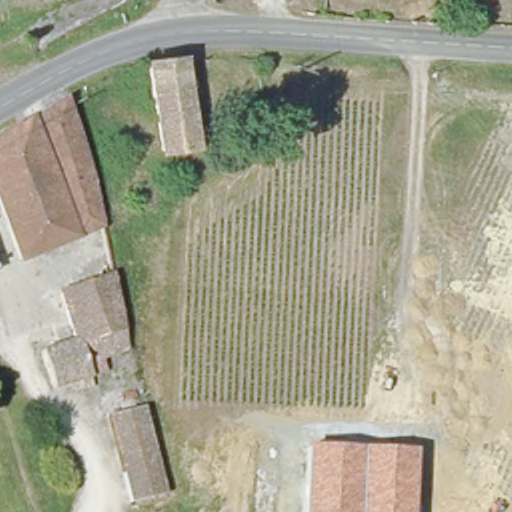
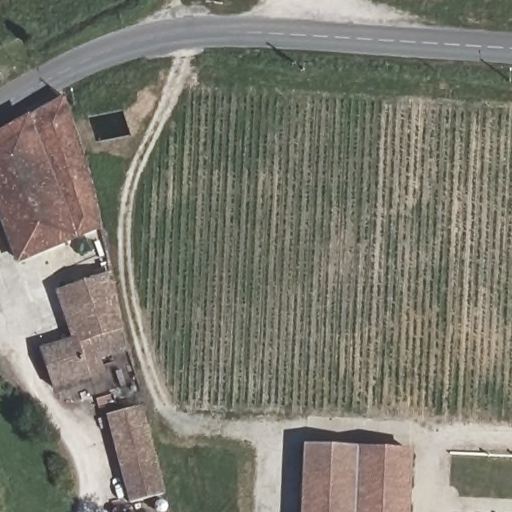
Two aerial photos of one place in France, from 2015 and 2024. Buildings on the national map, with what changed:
demolished [(197,146),(157,153),(146,63),(186,61),(197,146)]
unchanged [(102,228),(14,262),(0,218),(0,136),(63,96),(88,174),(102,228)]
unchanged [(83,366),(85,380),(50,389),(38,352),(71,339),(57,294),(118,275),(135,353),(83,366)]
unchanged [(166,493),(128,502),(106,412),(143,404),(166,493)]
unchanged [(412,512),(302,512),(306,443),(416,449),(412,512)]

